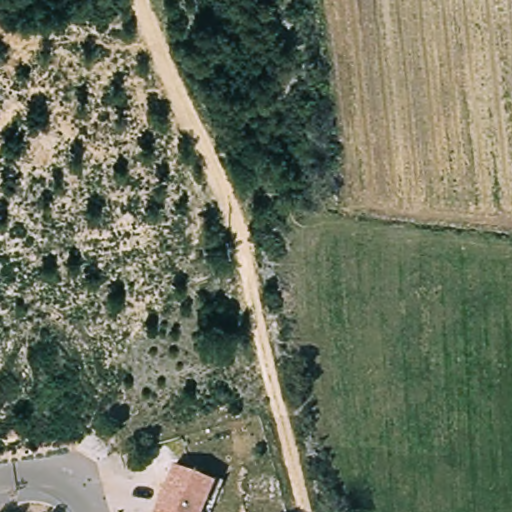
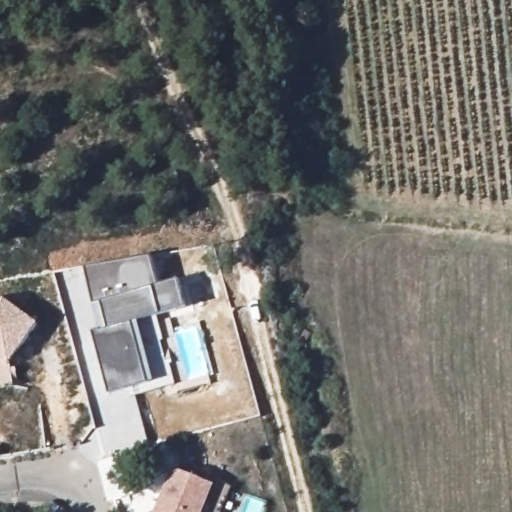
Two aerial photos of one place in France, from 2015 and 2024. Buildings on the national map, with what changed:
new [(139,320),(156,382),(109,394),(90,330),(98,329),(84,267),(150,256),(158,285),(179,279),(187,308),(139,320)]
new [(0,356),(0,300),(6,299),(37,325),(10,363),(0,356)]
unchanged [(201,512),(160,512),(158,506),(174,466),(215,486),(201,512)]

